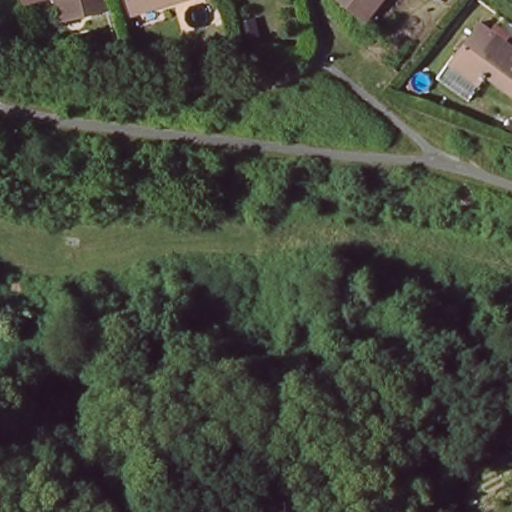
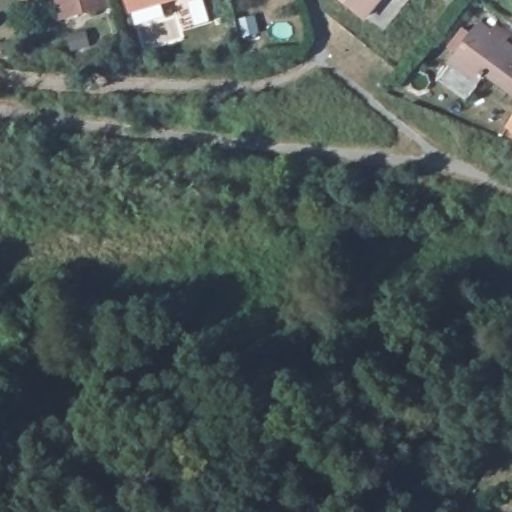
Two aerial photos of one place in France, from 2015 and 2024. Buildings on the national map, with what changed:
unchanged [(18,0),(32,0),(19,3),(18,0)]
unchanged [(48,0),(105,0),(106,7),(55,20),(48,0)]
unchanged [(130,0),(173,0),(133,12),(130,0)]
unchanged [(340,0),(378,0),(363,18),(340,0)]
unchanged [(447,68),(453,58),(477,25),(512,50),(512,100),(481,78),(474,88),(447,68)]

